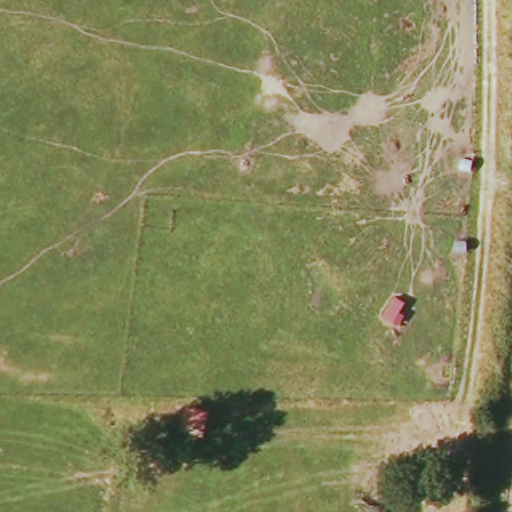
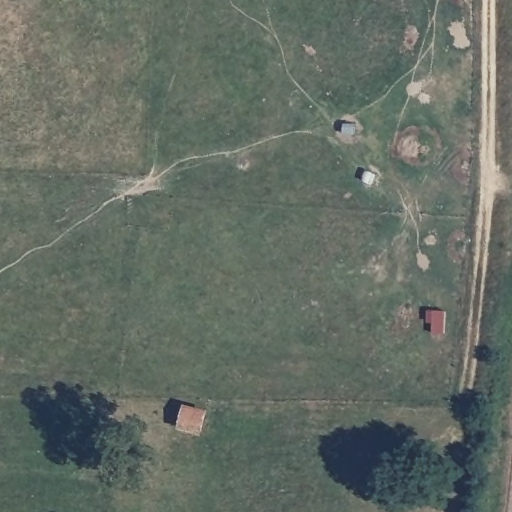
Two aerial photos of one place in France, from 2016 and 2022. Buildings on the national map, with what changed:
unchanged [(205,412),(202,432),(184,428),(188,408),(205,412)]

